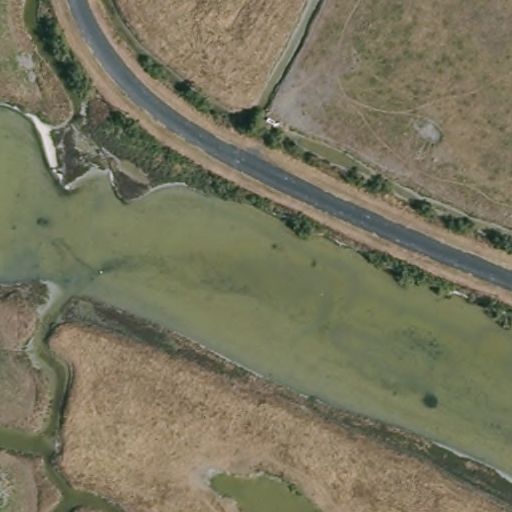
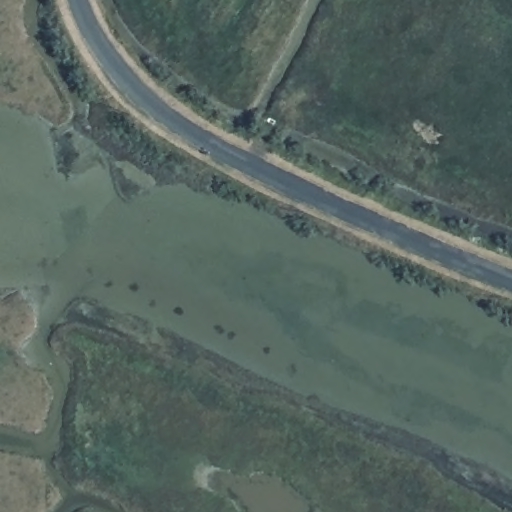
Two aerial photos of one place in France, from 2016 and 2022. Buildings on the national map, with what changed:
[]

